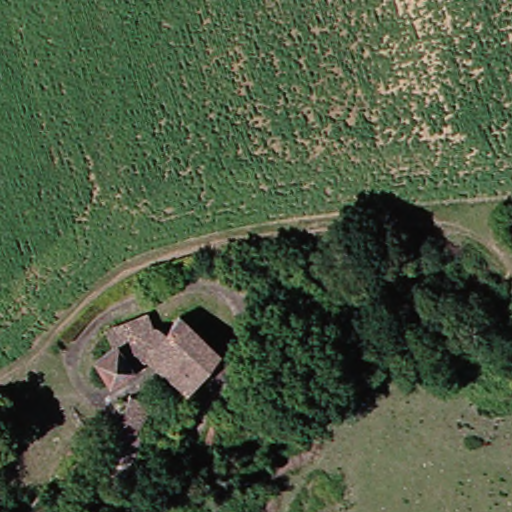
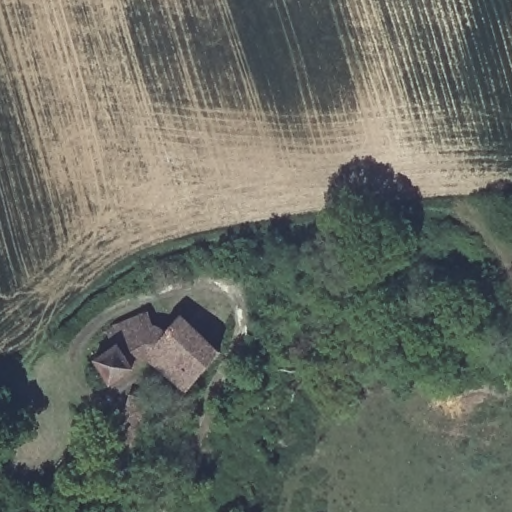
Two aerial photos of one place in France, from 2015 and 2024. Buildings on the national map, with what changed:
unchanged [(151,363),(112,383),(99,358),(116,349),(108,327),(150,312),(159,340),(183,318),(227,352),(191,393),(151,363)]
unchanged [(132,394),(153,397),(144,442),(124,492),(107,478),(132,394)]

